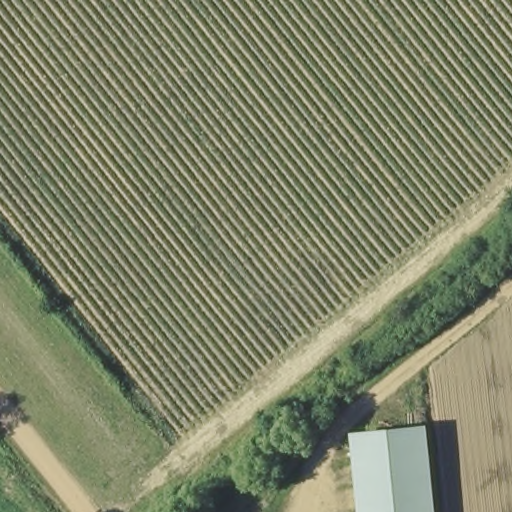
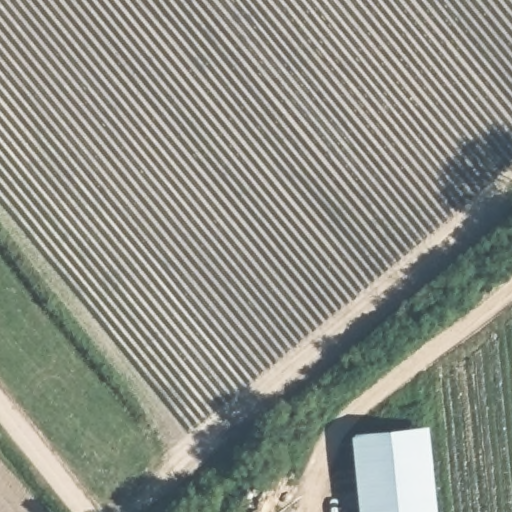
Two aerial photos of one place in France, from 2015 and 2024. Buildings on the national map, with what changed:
unchanged [(427,432),(431,512),(358,512),(356,435),(390,434),(427,432)]

